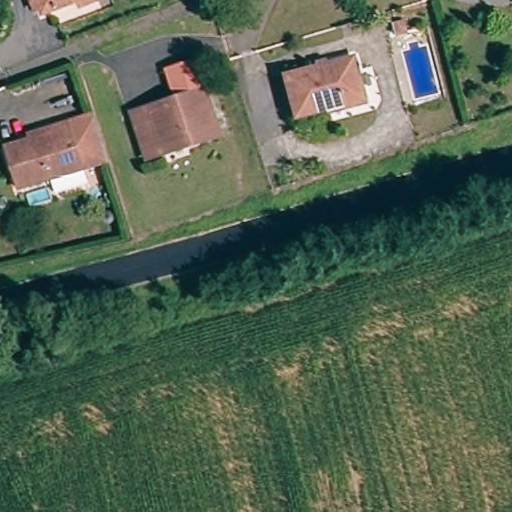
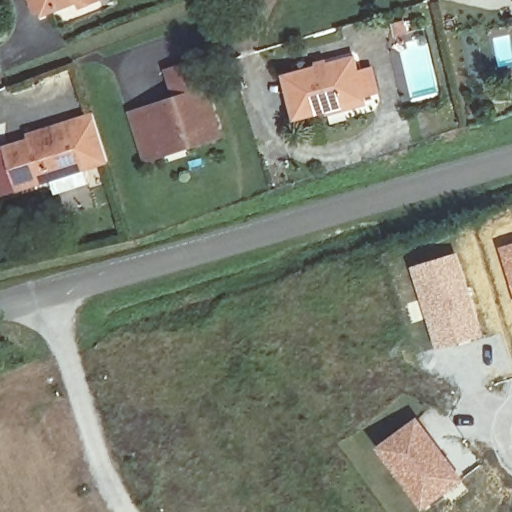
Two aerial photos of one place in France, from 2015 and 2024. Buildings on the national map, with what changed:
unchanged [(92,3),(78,8),(73,0),(43,13),(37,0),(91,0),(92,3)]
unchanged [(407,21),(411,36),(399,39),(396,25),(407,21)]
unchanged [(166,152),(149,158),(133,111),(177,96),(168,68),(195,59),(205,87),(219,126),(221,133),(166,152)]
unchanged [(366,95),(303,113),(293,78),(356,59),(366,95)]
unchanged [(55,187),(50,173),(19,184),(4,142),(29,133),(26,127),(50,119),(90,105),(91,109),(105,153),(81,161),(86,176),(55,187)]
new [(19,184),(21,191),(2,197),(0,191),(0,148),(5,146),(19,184)]
new [(512,242),(512,281),(502,244),(512,242)]
new [(421,299),(412,265),(458,251),(483,335),(436,349),(427,318),(411,323),(405,304),(421,299)]
new [(463,479),(443,493),(436,483),(426,482),(416,491),(383,447),(419,421),(463,479)]

